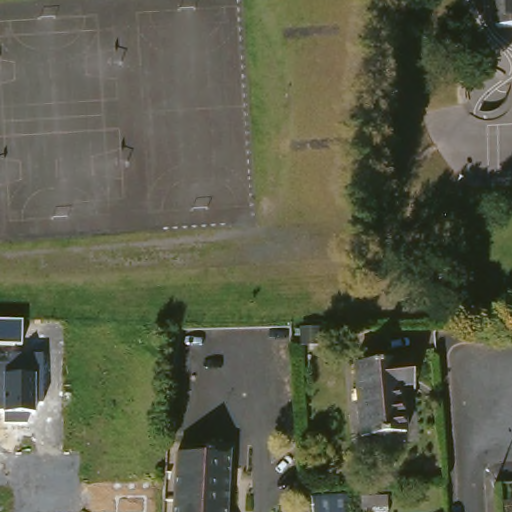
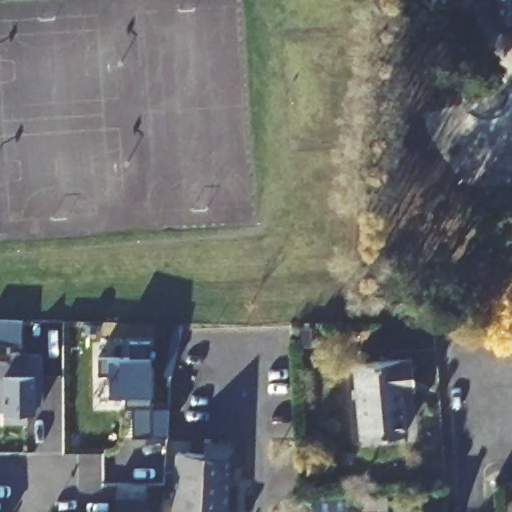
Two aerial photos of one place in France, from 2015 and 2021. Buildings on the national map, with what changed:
unchanged [(500,0),(512,0),(512,29),(501,29),(500,0)]
unchanged [(318,332),(319,348),(299,350),(298,333),(318,332)]
new [(132,438),(132,407),(126,407),(127,395),(108,395),(108,376),(99,376),(99,358),(108,358),(130,357),(130,343),(149,343),(149,358),(151,357),(152,395),(150,395),(150,411),(168,411),(167,436),(132,438)]
unchanged [(3,427),(4,411),(0,411),(0,367),(9,367),(10,371),(28,371),(28,357),(43,356),(44,404),(35,404),(35,413),(28,413),(28,425),(3,427)]
unchanged [(358,362),(417,357),(418,377),(407,378),(408,400),(362,402),(358,362)]
unchanged [(362,402),(408,400),(410,433),(365,436),(362,402)]
unchanged [(208,445),(233,446),(231,512),(175,512),(177,454),(207,455),(207,445),(208,445)]
unchanged [(356,512),(319,512),(317,487),(354,486),(356,512)]
new [(116,498),(147,497),(147,512),(116,512),(116,498)]

